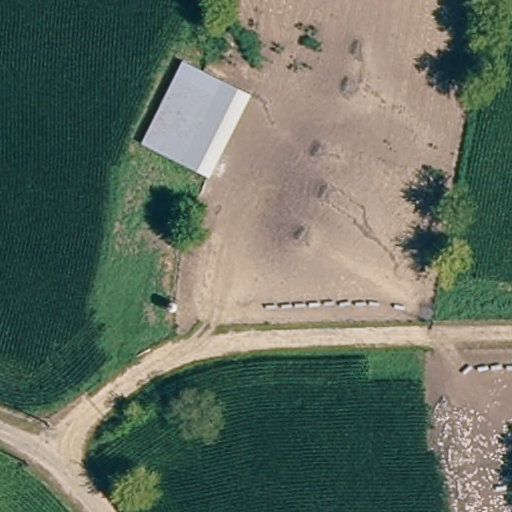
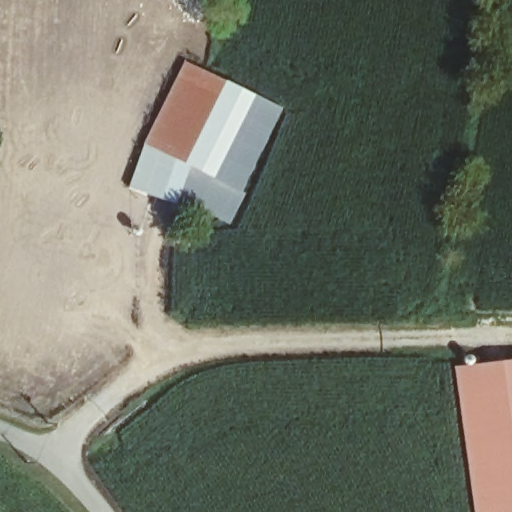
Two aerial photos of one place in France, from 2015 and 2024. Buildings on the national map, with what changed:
unchanged [(205,179),(141,147),(171,85),(185,57),(246,87),(250,89),(205,179)]
new [(205,179),(247,94),(279,109),(239,192),(242,194),(225,224),(178,202),(175,207),(126,189),(141,147),(205,179)]
new [(452,367),(512,359),(512,512),(473,512),(452,367)]

